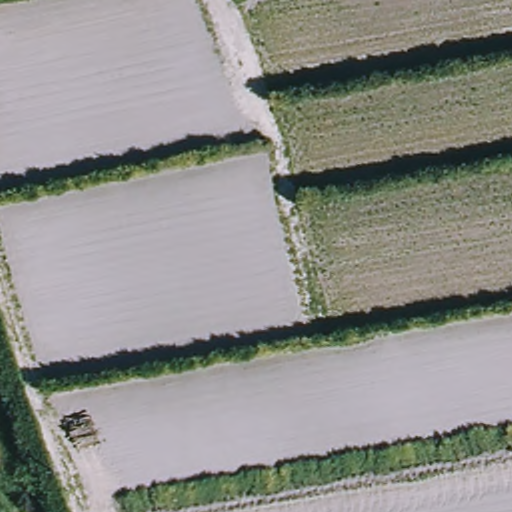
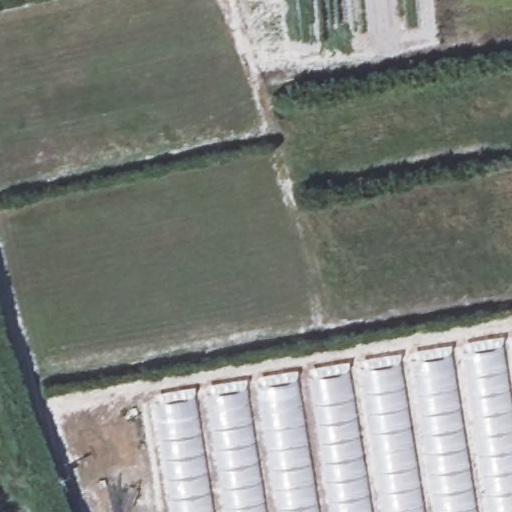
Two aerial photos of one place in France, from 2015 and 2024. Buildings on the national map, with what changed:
new [(159,403),(512,346),(512,512),(177,512),(159,403)]

